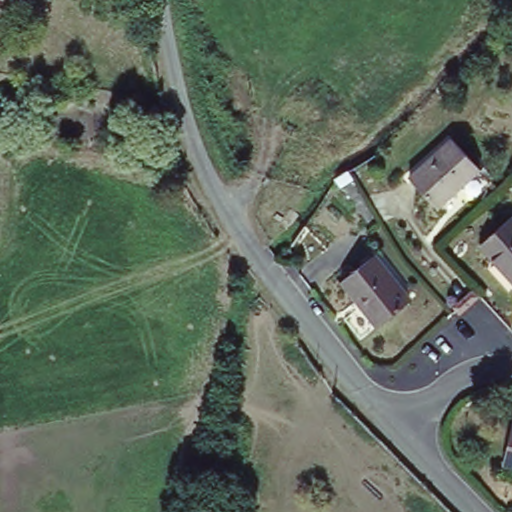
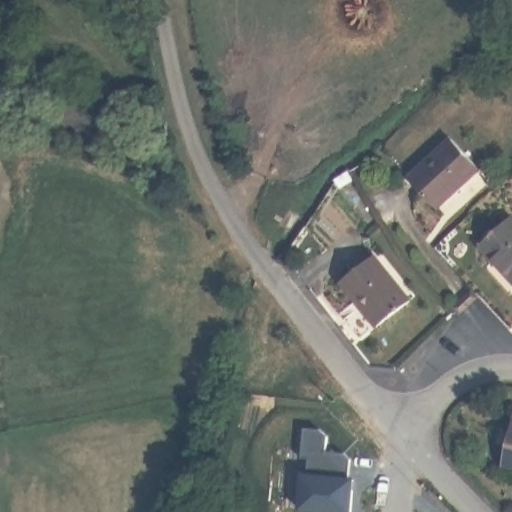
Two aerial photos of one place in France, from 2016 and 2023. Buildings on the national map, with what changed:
unchanged [(451,144),(477,173),(439,208),(413,180),(451,144)]
unchanged [(512,229),(512,281),(479,248),(506,223),(512,229)]
unchanged [(372,258),(411,301),(379,328),(341,286),(372,258)]
new [(322,428),(330,436),(328,450),(346,452),(353,459),(350,490),(355,490),(352,512),(327,512),(302,509),(305,476),(310,476),(311,459),(304,458),(307,427),(322,428)]
unchanged [(512,463),(504,460),(512,427),(512,463)]

